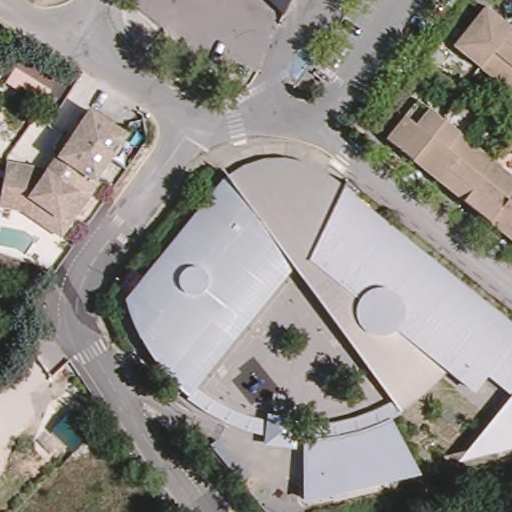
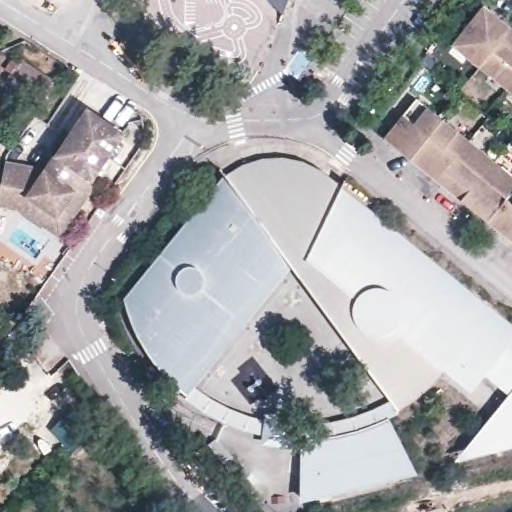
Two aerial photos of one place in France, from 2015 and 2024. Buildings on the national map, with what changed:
unchanged [(286,14),(278,4),(273,0),(292,0),(286,14)]
unchanged [(482,6),(489,11),(486,16),(493,21),(496,17),(512,30),(512,96),(450,45),(482,6)]
unchanged [(47,90),(13,67),(23,52),(57,75),(47,90)]
unchanged [(325,86),(310,74),(317,63),(333,74),(325,86)]
unchanged [(504,230),(496,224),(493,228),(479,216),(482,212),(475,207),(472,211),(449,192),(452,188),(445,183),(442,186),(427,174),(429,170),(423,165),(421,169),(396,150),(399,146),(393,140),(390,145),(381,137),(413,99),(512,179),(512,244),(501,235),(504,230)]
unchanged [(3,162),(42,169),(85,107),(127,139),(57,232),(28,211),(0,206),(0,179),(3,162)]
unchanged [(241,167),(269,161),(295,162),(318,172),(339,183),(512,328),(512,451),(492,456),(454,462),(505,396),(481,380),(470,396),(446,373),(419,399),(390,421),(352,436),(324,441),(295,440),(293,450),(263,446),(265,438),(239,434),(214,424),(194,411),(180,396),(123,300),(218,180),(241,167)]
unchanged [(406,463),(413,477),(302,502),(302,443),(318,442),(324,441),(334,440),(346,438),(352,436),(357,435),(368,432),(386,424),(406,463)]

